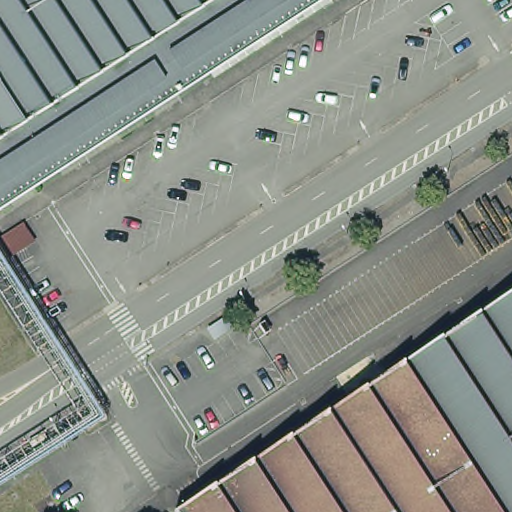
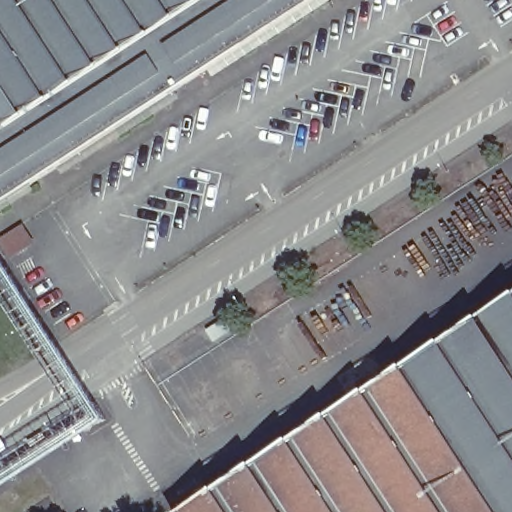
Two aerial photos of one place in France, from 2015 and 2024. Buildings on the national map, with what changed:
unchanged [(305,0),(0,193),(0,0),(305,0)]
unchanged [(189,501),(512,295),(512,512),(196,512),(189,501)]

